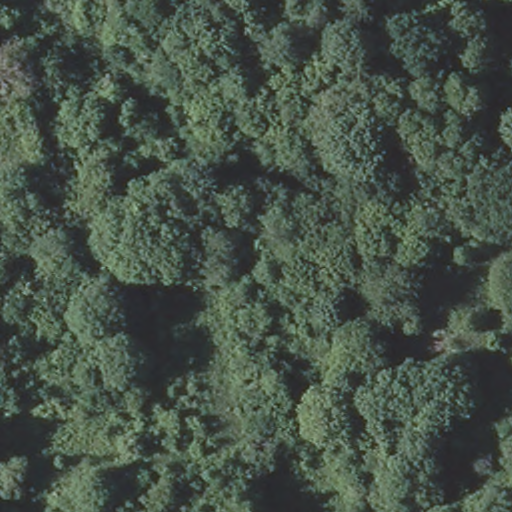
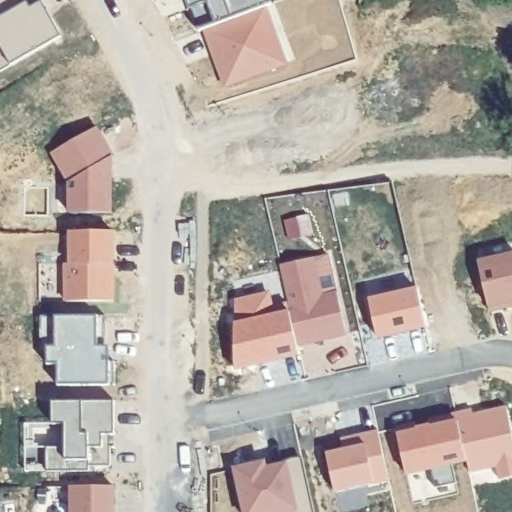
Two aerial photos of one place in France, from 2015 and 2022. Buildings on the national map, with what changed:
new [(0,3),(0,0),(5,0),(0,3)]
new [(42,6),(40,6),(48,20),(52,18),(64,40),(0,76),(0,50),(2,49),(0,45),(0,3),(5,0),(39,0),(42,6)]
new [(189,1),(188,0),(193,0),(189,1)]
new [(201,35),(193,11),(200,9),(197,0),(262,0),(266,11),(201,35)]
new [(262,0),(272,0),(274,7),(266,11),(262,0)]
new [(44,4),(52,18),(48,20),(40,6),(44,4)]
new [(208,32),(261,13),(275,52),(283,50),(289,68),(228,89),(222,72),(215,53),(208,32)]
new [(54,156),(99,131),(115,161),(108,164),(108,183),(113,183),(113,216),(71,216),(71,186),(54,156)]
new [(114,304),(67,305),(67,267),(72,267),(71,234),(113,234),(114,268),(114,279),(114,304)]
new [(509,311),(493,315),(482,266),(512,260),(512,305),(508,306),(512,305),(512,310),(509,311)]
new [(325,299),(339,296),(349,339),(300,350),(282,269),(316,262),(325,299)]
new [(373,304),(421,293),(429,330),(381,341),(373,304)]
new [(271,298),(274,311),(291,308),(302,358),(238,373),(238,305),(271,298)]
new [(108,320),(108,365),(117,365),(116,389),(59,389),(59,368),(49,368),(49,351),(43,352),(43,321),(57,321),(58,350),(57,320),(108,320)]
new [(117,405),(117,438),(104,438),(105,450),(112,450),(112,470),(91,469),(91,474),(48,475),(48,450),(67,450),(67,428),(54,428),(54,405),(117,405)]
new [(459,417),(474,414),(476,419),(509,412),(512,423),(512,483),(503,485),(500,472),(473,477),(459,417)]
new [(455,468),(459,488),(438,492),(434,473),(409,478),(399,433),(419,428),(432,425),(460,419),(470,465),(455,468)]
new [(27,427),(54,426),(54,428),(60,428),(67,428),(67,450),(60,450),(48,450),(48,475),(27,475),(27,427)]
new [(392,485),(339,497),(329,458),(346,454),(344,443),(349,442),(381,435),(392,485)]
new [(267,466),(269,473),(268,469),(305,461),(306,465),(316,512),(246,512),(238,473),(267,466)]
new [(115,512),(73,512),(73,490),(115,490),(115,512)]

